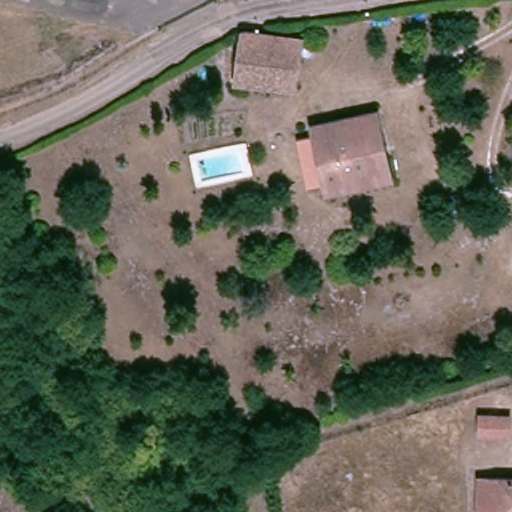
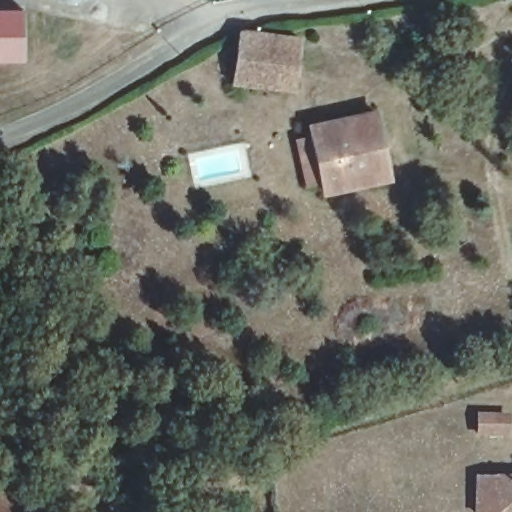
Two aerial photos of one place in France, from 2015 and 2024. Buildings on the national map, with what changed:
new [(23,61),(0,62),(0,11),(23,10),(23,61)]
unchanged [(306,35),(297,84),(243,74),(249,30),(306,35)]
unchanged [(377,112),(391,172),(330,186),(316,127),(377,112)]
unchanged [(476,418),(506,418),(505,435),(476,435),(476,418)]
unchanged [(512,475),(512,511),(495,510),(480,510),(480,474),(512,475)]

